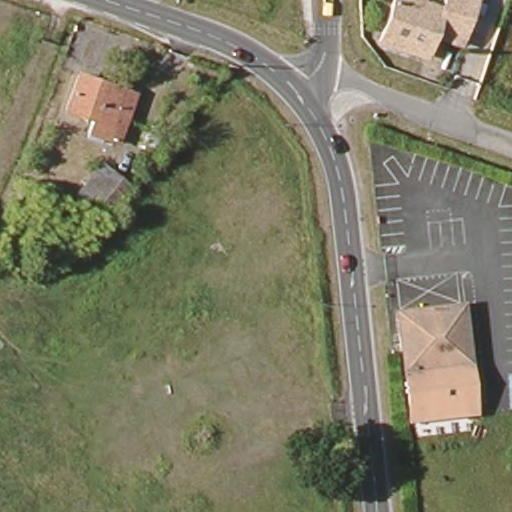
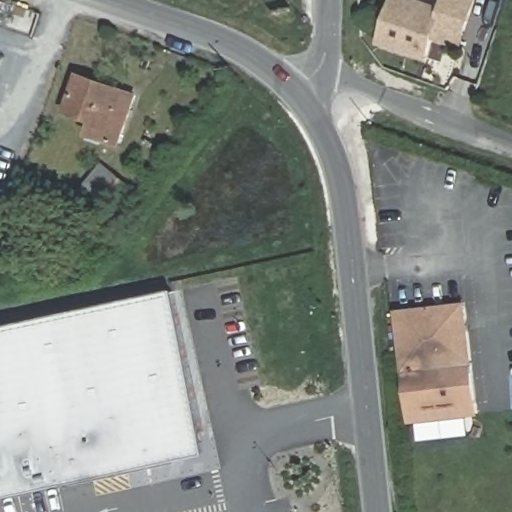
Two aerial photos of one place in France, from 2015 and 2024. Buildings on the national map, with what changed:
unchanged [(433,28),(427,51),(380,35),(393,0),(429,0),(443,5),(445,0),(474,0),(466,24),(461,39),(453,36),(433,28)]
unchanged [(127,91),(111,137),(84,128),(89,115),(60,106),(73,70),(127,91)]
demolished [(242,95),(239,105),(227,101),(230,91),(242,95)]
unchanged [(127,186),(104,214),(77,193),(102,166),(127,186)]
new [(210,452),(0,497),(0,326),(176,288),(210,452)]
unchanged [(413,424),(412,413),(405,354),(401,316),(412,315),(465,308),(476,405),(477,416),(413,424)]

